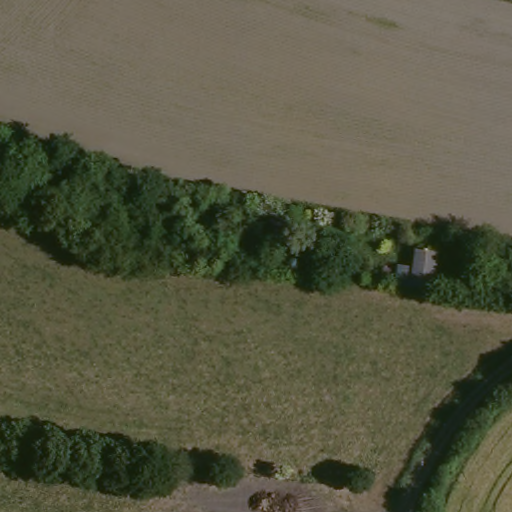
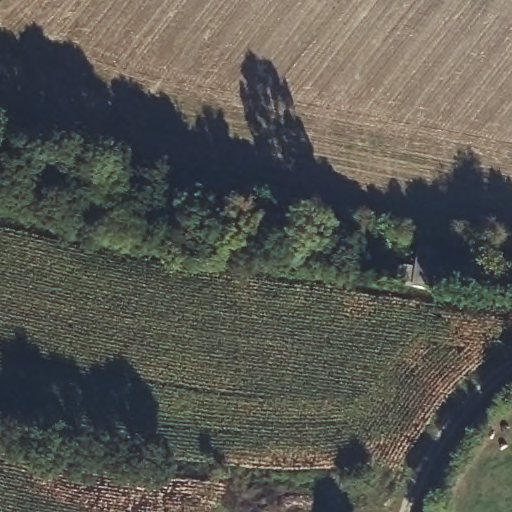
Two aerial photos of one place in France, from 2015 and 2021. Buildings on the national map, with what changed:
unchanged [(455,289),(416,286),(419,265),(435,265),(438,250),(458,252),(455,289)]

